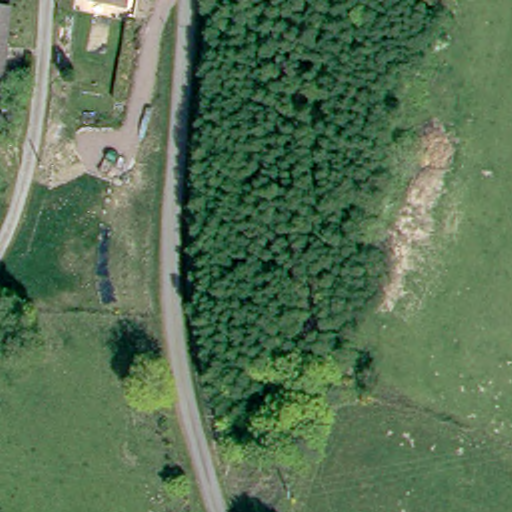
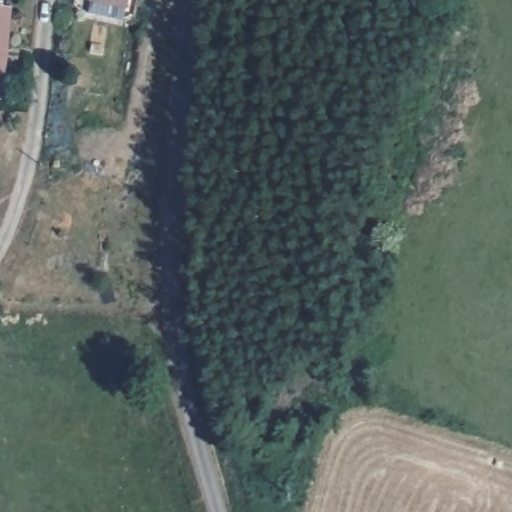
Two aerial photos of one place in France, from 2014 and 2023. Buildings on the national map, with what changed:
unchanged [(126,9),(91,6),(91,1),(91,0),(127,0),(127,1),(126,9)]
unchanged [(1,15),(1,18),(0,26),(0,15),(1,15)]

